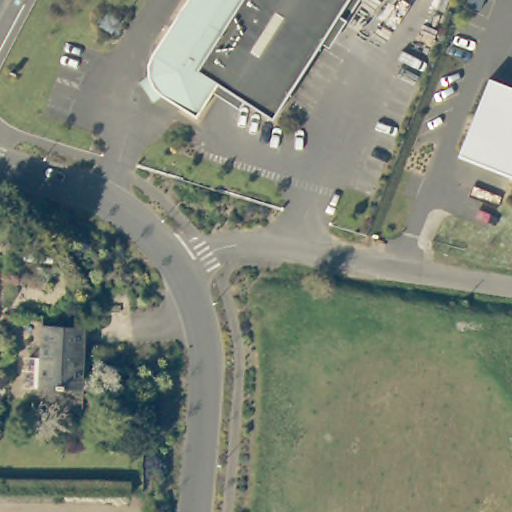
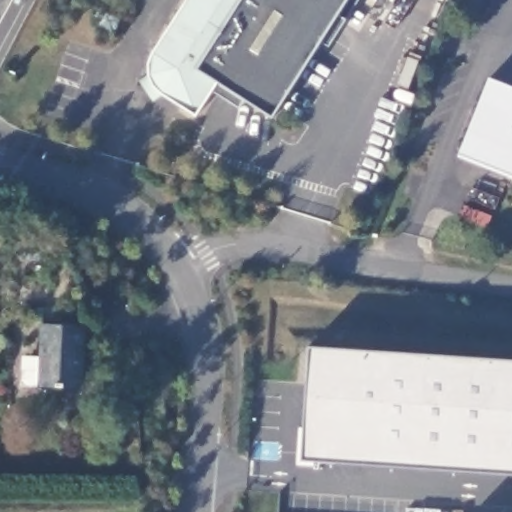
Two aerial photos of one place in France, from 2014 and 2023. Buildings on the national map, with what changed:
unchanged [(219,90),(197,122),(155,96),(150,84),(149,68),(157,49),(191,0),(352,0),(272,123),(219,90)]
unchanged [(490,82),(512,91),(512,176),(461,156),(490,82)]
unchanged [(42,325),(84,328),(82,391),(40,388),(42,325)]
new [(512,475),(300,460),(308,349),(512,362),(512,475)]

